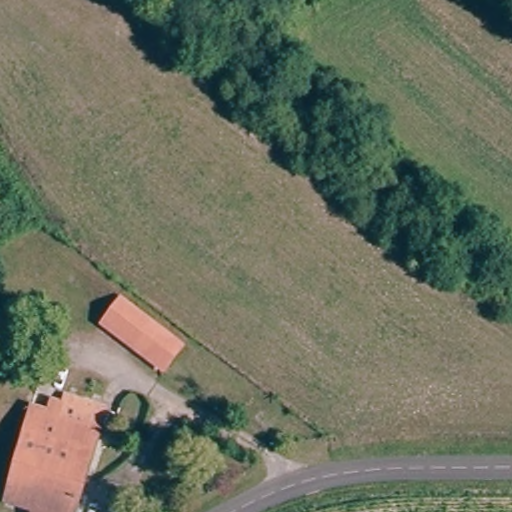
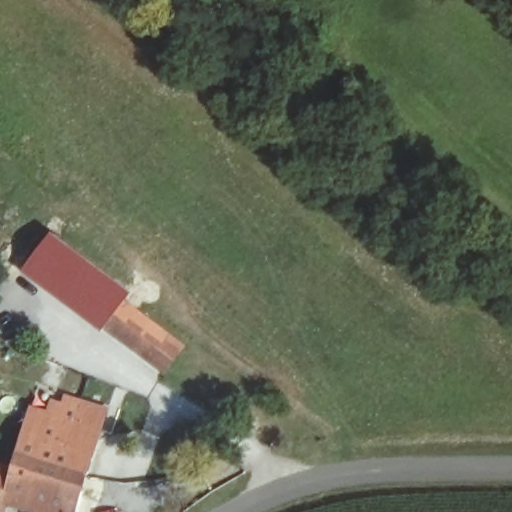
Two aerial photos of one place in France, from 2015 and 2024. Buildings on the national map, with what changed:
new [(125,301),(129,304),(107,330),(104,328),(101,331),(24,273),(52,232),(131,292),(125,301)]
unchanged [(186,350),(166,376),(107,330),(129,304),(186,350)]
unchanged [(11,502),(39,408),(49,411),(52,398),(69,402),(71,396),(103,405),(112,408),(105,432),(82,512),(37,512),(37,510),(11,502)]
new [(11,502),(10,505),(7,512),(0,512),(0,462),(11,465),(30,405),(39,408),(11,502)]
demolished [(108,509),(121,512),(107,512),(108,509)]

